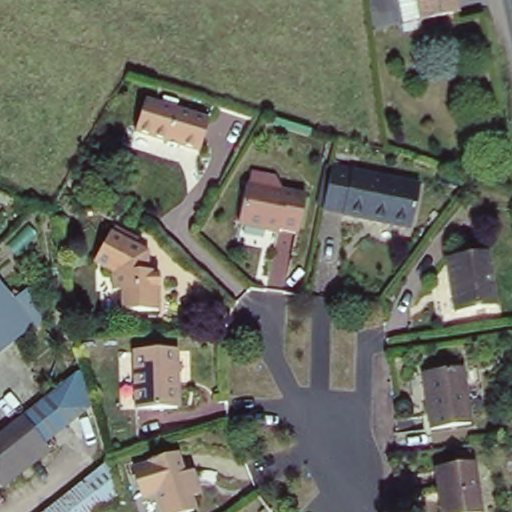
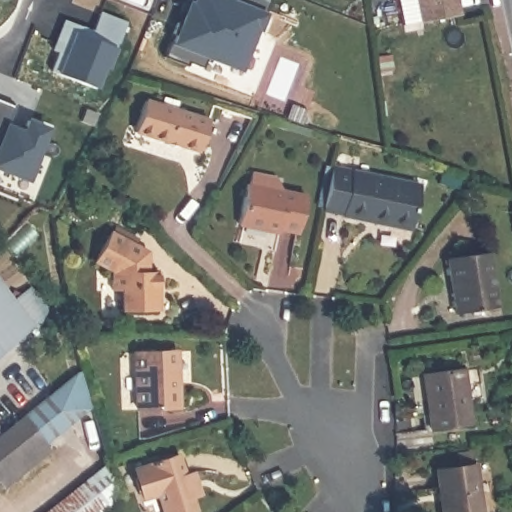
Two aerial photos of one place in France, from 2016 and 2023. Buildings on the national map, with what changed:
new [(254,30),(238,71),(205,58),(201,69),(187,64),(185,67),(161,58),(167,42),(171,43),(174,35),(170,34),(175,22),(179,23),(182,15),(176,13),(181,0),(185,2),(185,0),(269,0),(256,30),(254,30)]
unchanged [(397,0),(455,0),(458,15),(402,25),(397,0)]
new [(107,70),(103,69),(96,89),(51,71),(58,53),(52,50),(63,21),(79,27),(77,34),(88,38),(98,13),(125,24),(118,43),(116,43),(107,70)]
new [(88,38),(77,34),(79,27),(91,32),(88,38)]
unchanged [(195,152),(175,145),(174,149),(162,145),(163,141),(130,131),(142,99),(206,120),(195,152)]
new [(24,128),(28,118),(49,125),(40,149),(37,147),(27,180),(0,170),(0,137),(6,123),(24,128)]
unchanged [(411,230),(323,210),(333,166),(421,185),(411,230)]
unchanged [(265,230),(238,223),(248,182),(252,183),(254,172),(281,179),(278,189),(307,197),(298,232),(281,227),(279,234),(265,230)]
unchanged [(153,265),(158,270),(168,270),(167,310),(128,308),(128,288),(117,288),(118,270),(92,253),(110,227),(147,251),(153,265)]
unchanged [(494,307),(455,313),(448,258),(488,252),(494,307)]
unchanged [(10,295),(14,291),(46,309),(37,328),(34,327),(23,337),(0,354),(0,283),(10,295)]
unchanged [(177,409),(133,411),(131,353),(175,352),(177,409)]
unchanged [(39,441),(45,449),(0,484),(0,430),(18,415),(17,413),(67,373),(75,368),(80,383),(83,393),(86,403),(55,429),(39,441)]
unchanged [(469,425),(430,430),(424,374),(462,369),(469,425)]
unchanged [(436,469),(457,466),(456,454),(471,452),(472,464),(474,463),(480,512),(442,512),(436,469)]
unchanged [(188,511),(184,512),(157,512),(152,493),(138,497),(130,470),(172,458),(177,475),(188,472),(195,494),(185,497),(188,511)]
unchanged [(97,512),(47,512),(109,463),(119,494),(97,512)]

